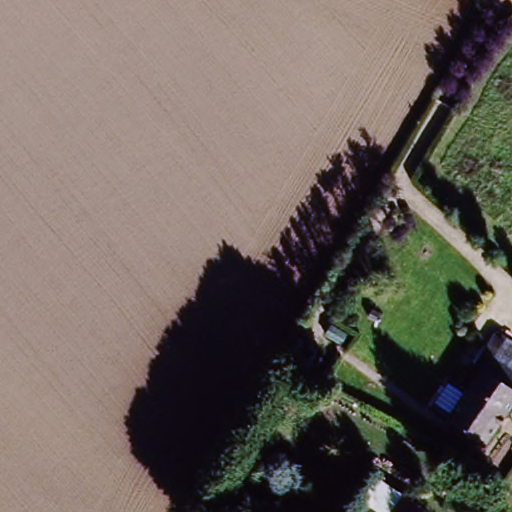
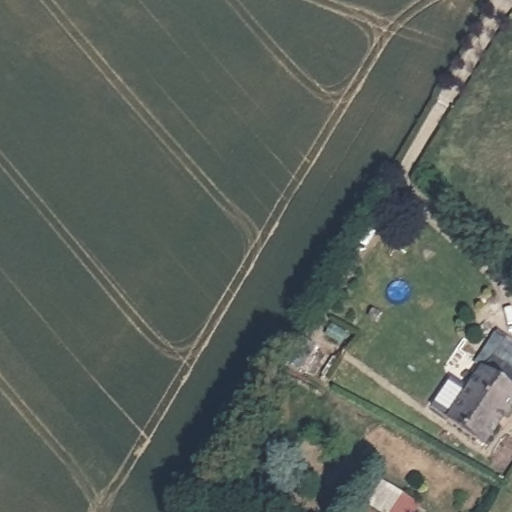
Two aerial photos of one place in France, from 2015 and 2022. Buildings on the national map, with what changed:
unchanged [(302,336),(312,345),(301,365),(288,357),(302,336)]
unchanged [(512,359),(512,402),(488,438),(454,415),(498,349),(512,359)]
unchanged [(375,473),(420,504),(414,512),(378,512),(359,500),(375,473)]

